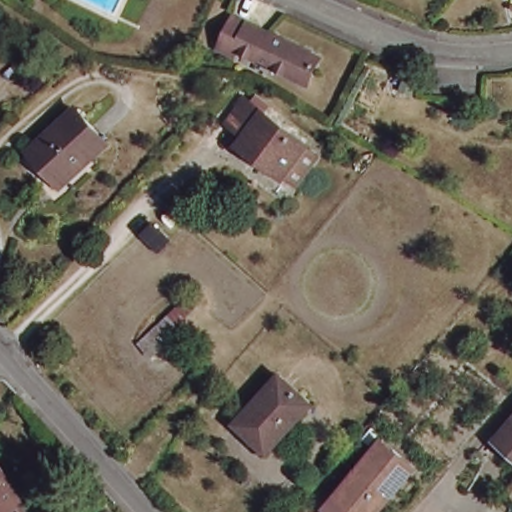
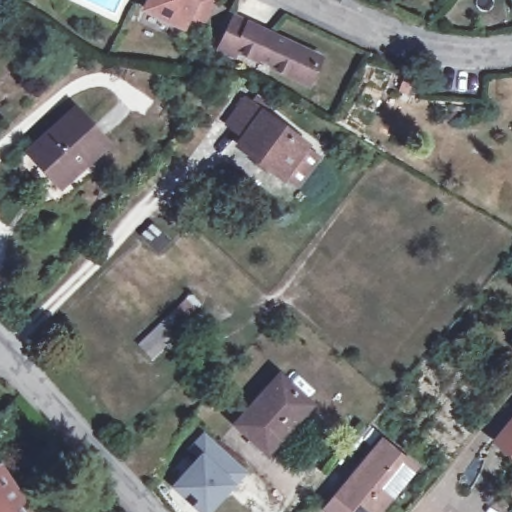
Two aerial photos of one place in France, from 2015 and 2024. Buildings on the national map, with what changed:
unchanged [(150,0),(214,0),(201,28),(186,21),(183,27),(146,10),(150,0)]
unchanged [(274,63),(259,56),(257,58),(238,49),(234,55),(219,47),(235,16),(321,57),(309,82),(273,65),(274,63)]
unchanged [(286,193),(273,183),(229,151),(237,141),(220,128),(238,105),(298,150),(312,160),(286,193)]
unchanged [(88,155),(59,182),(30,152),(75,109),(108,144),(93,158),(88,155)]
unchanged [(113,263),(133,240),(138,245),(118,268),(113,263)]
unchanged [(139,343),(191,293),(202,304),(149,354),(139,343)]
unchanged [(251,437),(263,425),(248,411),(281,375),(313,404),(269,453),(251,437)]
unchanged [(512,420),(512,462),(492,444),(512,420)]
new [(211,512),(199,512),(172,487),(196,457),(188,449),(204,432),(248,472),(236,484),(211,512)]
unchanged [(336,496),(384,441),(416,468),(377,512),(333,512),(328,507),(336,496)]
unchanged [(1,463),(32,512),(0,512),(0,464),(1,463)]

